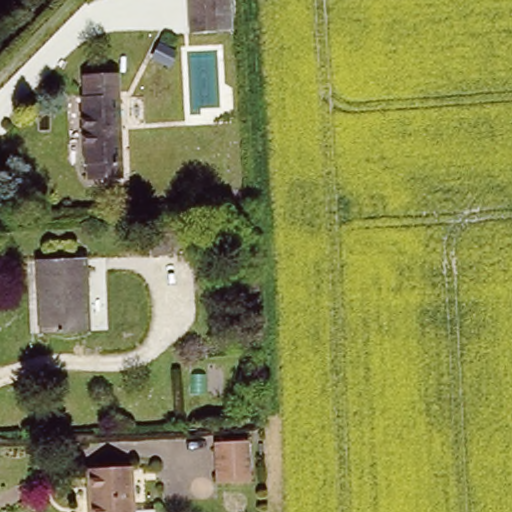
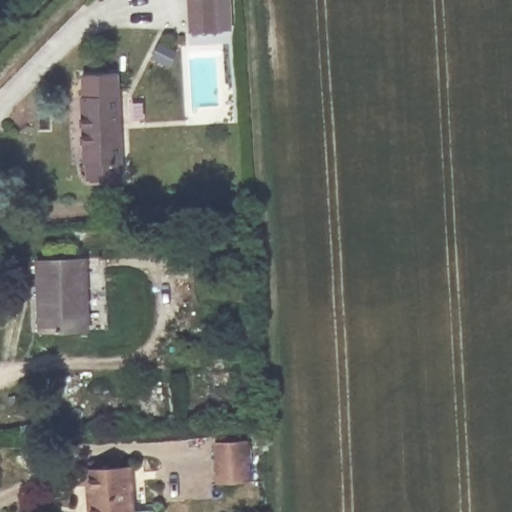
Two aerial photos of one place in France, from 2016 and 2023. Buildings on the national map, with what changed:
unchanged [(221,8),(221,21),(211,21),(211,34),(186,36),(184,0),(220,0),(221,8)]
unchanged [(120,189),(88,190),(88,176),(84,176),(83,90),(116,92),(120,189)]
unchanged [(143,258),(141,230),(165,229),(164,226),(183,226),(184,250),(166,251),(167,256),(143,258)]
unchanged [(88,326),(40,329),(38,286),(50,284),(48,269),(38,271),(36,258),(84,255),(88,326)]
unchanged [(244,487),(215,489),(213,451),(243,449),(244,487)]
unchanged [(152,505),(152,512),(91,512),(88,467),(91,464),(130,462),(132,506),(152,505)]

